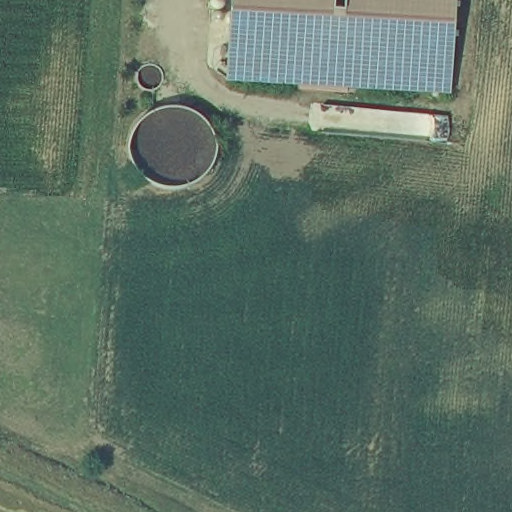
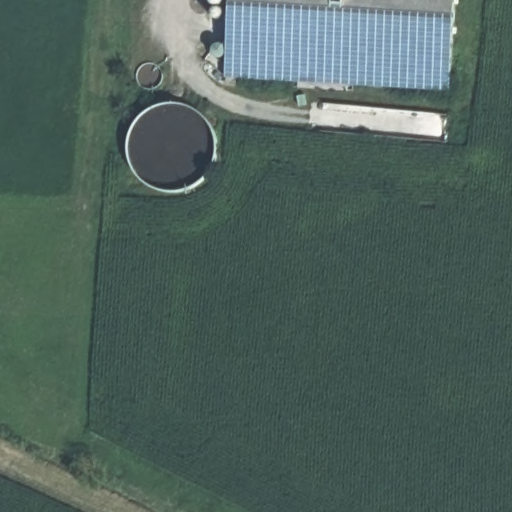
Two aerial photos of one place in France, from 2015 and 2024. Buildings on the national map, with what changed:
unchanged [(302,82),(230,79),(235,0),(459,0),(455,92),(352,86),(352,91),(302,89),(302,82)]

